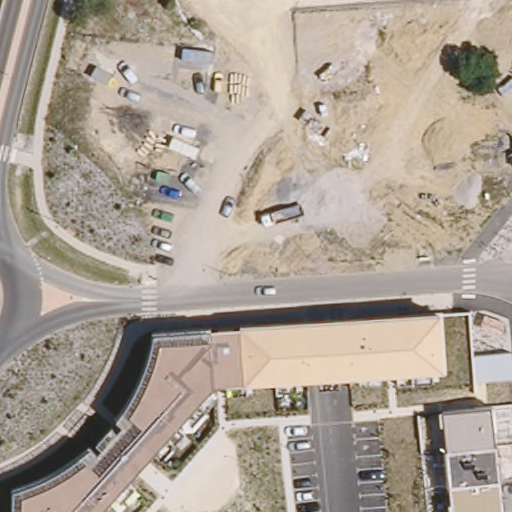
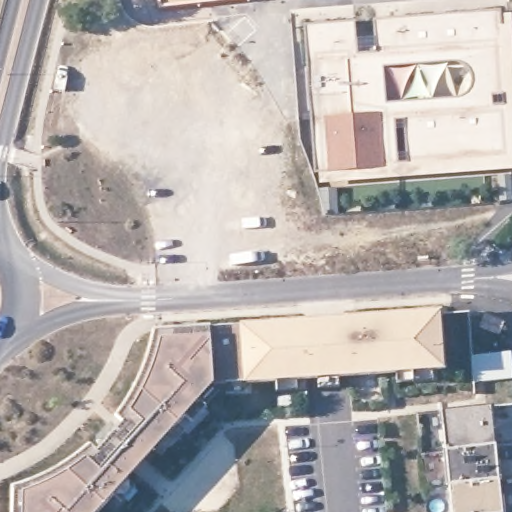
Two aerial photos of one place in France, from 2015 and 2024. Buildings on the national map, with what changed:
new [(158,0),(233,0),(159,9),(158,0)]
new [(319,172),(315,172),(305,26),(354,23),(357,54),(377,52),(374,21),(500,11),(500,16),(511,15),(512,28),(512,168),(320,184),(319,172)]
unchanged [(15,489),(36,482),(60,468),(91,447),(117,418),(135,391),(147,362),(154,333),(209,330),(239,327),(240,324),(442,313),(447,370),(431,370),(431,382),(397,385),(396,374),(338,378),(339,388),(318,390),(317,380),(296,381),(297,394),(277,396),(276,382),(247,384),(248,395),(227,396),(226,384),(215,384),(211,389),(220,395),(191,425),(185,418),(176,428),(184,433),(177,443),(160,460),(153,453),(127,481),(135,488),(120,504),(113,498),(99,512),(13,512),(15,489)]
new [(512,379),(476,383),(474,356),(512,352),(512,379)]
unchanged [(443,410),(492,406),(503,512),(452,512),(443,410)]

